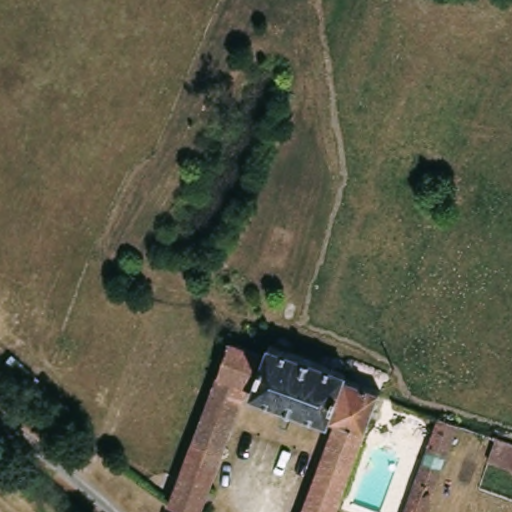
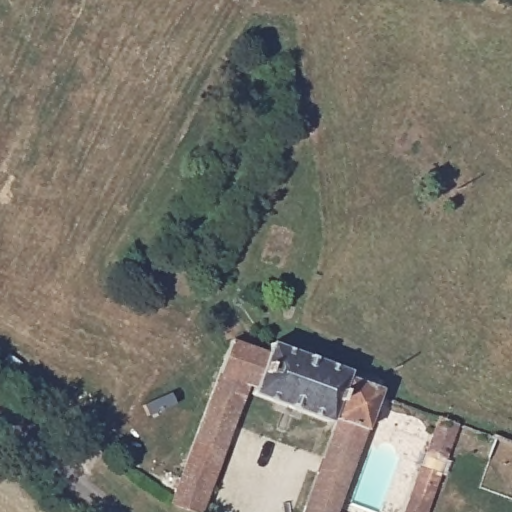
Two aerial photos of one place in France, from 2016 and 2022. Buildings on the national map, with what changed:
unchanged [(376,402),(334,512),(301,512),(305,502),(334,424),(326,421),(324,427),(250,400),(253,393),(242,389),(218,454),(208,481),(196,512),(182,512),(166,505),(179,470),(190,444),(199,420),(199,419),(228,346),(263,358),(268,351),(287,358),(345,379),(344,384),(359,389),(378,396),(376,402)]
unchanged [(420,512),(399,512),(434,413),(444,417),(453,420),(420,512)]

